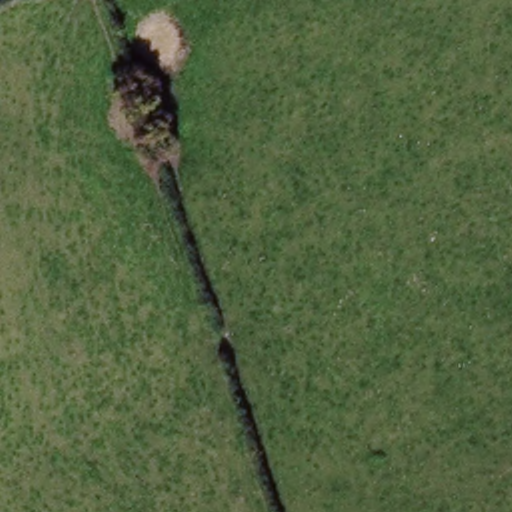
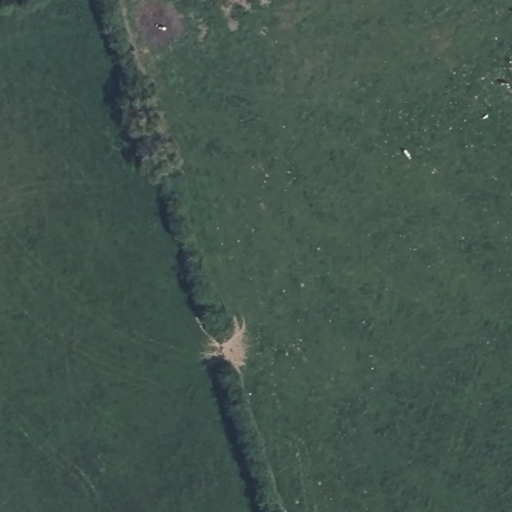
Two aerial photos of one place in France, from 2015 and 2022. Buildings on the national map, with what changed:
[]

